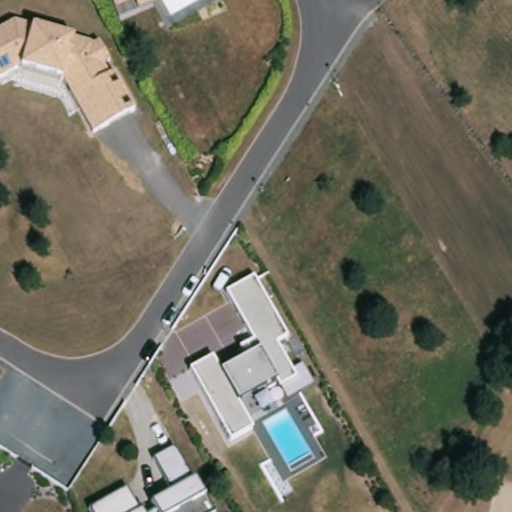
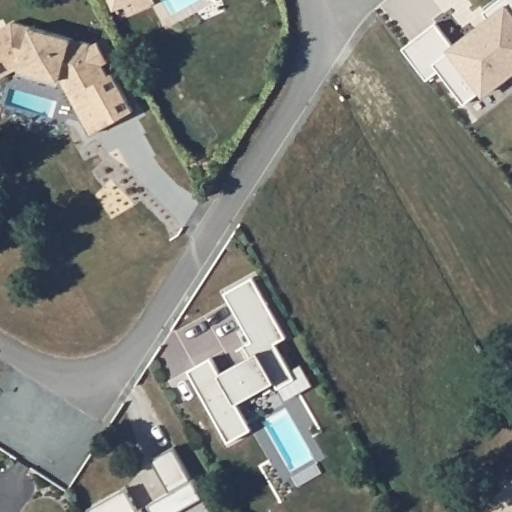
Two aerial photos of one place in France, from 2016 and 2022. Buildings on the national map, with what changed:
unchanged [(137,10),(133,2),(117,9),(113,0),(154,0),(137,10)]
new [(477,31),(490,20),(484,12),(499,0),(512,0),(512,66),(503,74),(506,77),(485,93),(482,91),(465,104),(440,71),(428,80),(404,48),(436,23),(455,48),(477,31)]
unchanged [(92,47),(100,45),(110,61),(103,67),(109,77),(113,75),(134,112),(91,137),(62,86),(16,72),(0,79),(0,31),(13,25),(92,47)]
unchanged [(285,336),(273,343),(293,377),(276,385),(275,381),(235,402),(250,429),(228,440),(187,370),(210,358),(219,373),(246,358),(236,348),(250,341),(224,293),(252,277),(285,336)]
unchanged [(175,448),(192,481),(169,493),(151,459),(175,448)]
unchanged [(150,512),(154,510),(150,503),(192,481),(201,495),(211,512),(150,512)]
unchanged [(125,490),(135,511),(138,510),(140,512),(90,512),(88,509),(125,490)]

